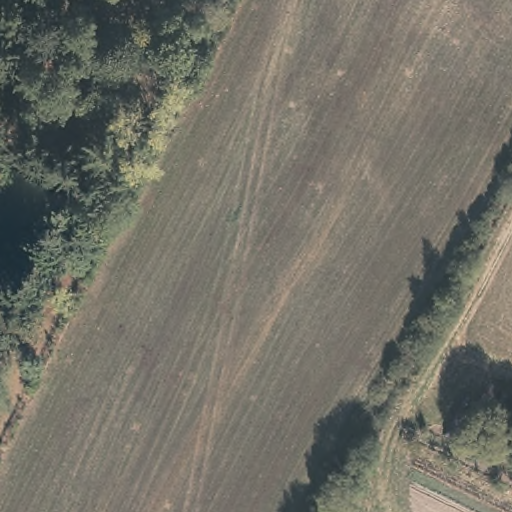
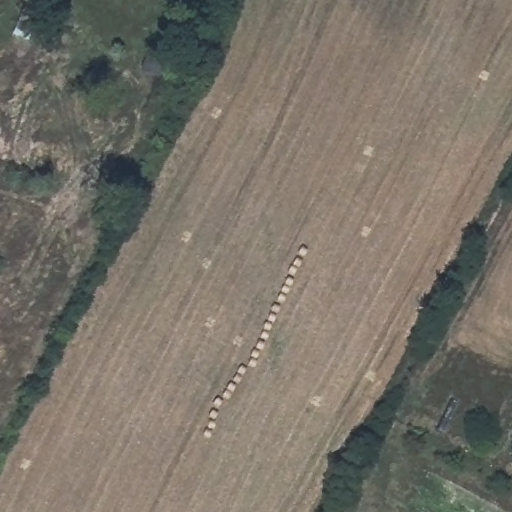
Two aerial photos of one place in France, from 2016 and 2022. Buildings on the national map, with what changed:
[]

